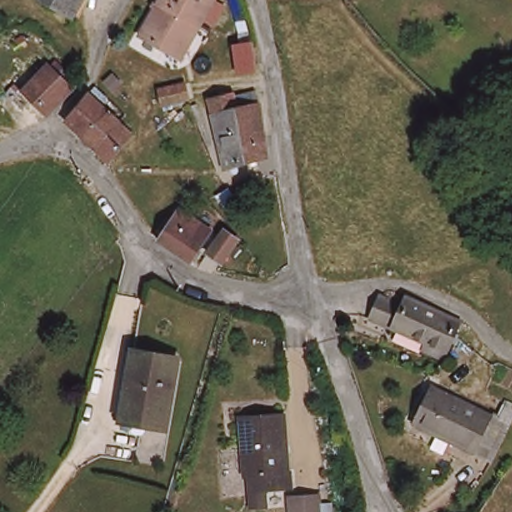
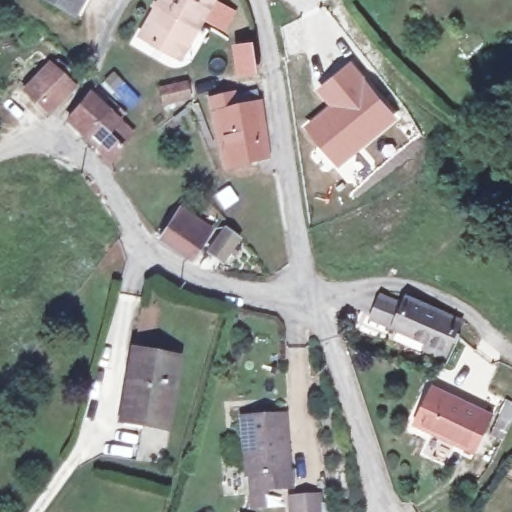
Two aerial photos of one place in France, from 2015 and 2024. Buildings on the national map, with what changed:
new [(39,0),(86,0),(73,21),(39,0)]
demolished [(66,0),(84,0),(83,4),(66,0)]
unchanged [(178,47),(140,25),(155,0),(207,0),(198,16),(178,47)]
unchanged [(23,83),(48,59),(70,79),(66,83),(55,95),(45,107),(44,108),(23,83)]
new [(338,167),(305,125),(330,105),(317,89),(352,60),(398,118),(338,167)]
unchanged [(75,124),(67,113),(82,95),(89,87),(117,119),(129,133),(100,159),(75,124)]
unchanged [(266,153),(222,161),(205,95),(232,89),(235,101),(257,96),(266,153)]
unchanged [(169,210),(178,201),(202,226),(192,234),(179,246),(150,226),(169,210)]
unchanged [(220,222),(229,233),(210,251),(200,241),(220,222)]
unchanged [(441,361),(427,353),(430,347),(372,316),(379,304),(380,302),(398,307),(402,302),(432,315),(458,327),(441,361)]
unchanged [(175,356),(162,423),(138,418),(140,410),(121,405),(131,348),(175,356)]
unchanged [(391,410),(412,374),(475,406),(484,388),(500,396),(490,413),(470,450),(391,410)]
unchanged [(244,474),(238,409),(280,407),(285,471),(290,470),(290,485),(261,487),(246,489),(244,474)]
unchanged [(314,498),(316,512),(289,512),(287,502),(314,498)]

